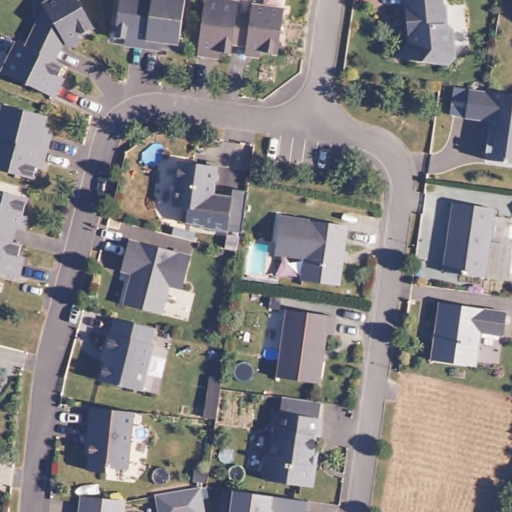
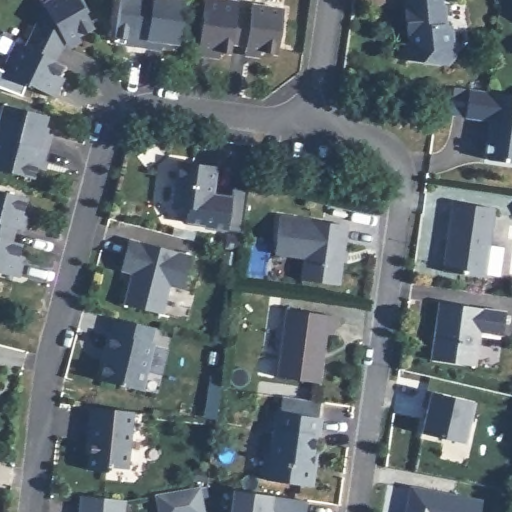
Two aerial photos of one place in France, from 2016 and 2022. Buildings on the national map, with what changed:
unchanged [(49,3),(47,0),(48,0),(83,0),(97,25),(69,40),(67,37),(56,57),(28,42),(49,3)]
unchanged [(134,44),(134,38),(118,35),(123,0),(155,0),(153,18),(152,21),(148,46),(134,44)]
unchanged [(153,18),(155,0),(187,0),(181,43),(164,41),(163,48),(148,46),(152,21),(153,18)]
unchanged [(213,58),(197,56),(205,0),(222,0),(238,2),(237,8),(236,13),(232,44),(230,54),(219,53),(218,59),(213,58)]
unchanged [(411,42),(407,0),(445,0),(445,4),(448,4),(449,23),(451,24),(455,27),(458,57),(450,65),(443,64),(412,60),(398,57),(411,42)]
unchanged [(236,13),(250,15),(252,4),(284,9),(277,54),(245,50),(246,46),(232,44),(236,13)]
unchanged [(63,80),(56,94),(4,67),(19,37),(28,42),(56,57),(66,62),(60,72),(66,75),(63,80)]
unchanged [(490,119),(465,116),(469,87),(512,93),(512,161),(488,158),(485,155),(487,139),(489,126),(490,119)]
unchanged [(48,116),(44,132),(51,134),(48,149),(46,149),(0,137),(0,122),(4,105),(48,116)]
unchanged [(48,149),(45,164),(39,163),(35,179),(0,171),(0,137),(46,149),(48,149)]
unchanged [(227,231),(204,228),(204,226),(186,223),(188,208),(173,206),(180,161),(218,167),(215,187),(213,195),(232,198),(227,231)]
unchanged [(21,228),(16,227),(14,241),(0,238),(0,190),(29,197),(21,228)]
unchanged [(496,207),(490,242),(484,275),(443,268),(448,235),(454,199),(496,207)]
unchanged [(349,227),(340,286),(303,280),(306,258),(276,253),(282,216),(349,227)]
unchanged [(21,277),(0,272),(0,238),(14,241),(23,244),(19,260),(25,261),(24,267),(21,277)]
unchanged [(131,272),(121,269),(129,238),(191,252),(183,286),(170,283),(163,312),(124,303),(130,280),(131,273),(131,272)]
unchanged [(443,301),(509,311),(506,334),(484,331),(479,365),(435,359),(438,339),(438,333),(443,301)]
unchanged [(337,312),(334,330),(327,329),(324,346),(320,349),(320,355),(323,355),(319,379),(276,372),(287,304),(337,312)]
unchanged [(102,349),(106,330),(109,331),(113,315),(142,322),(154,325),(150,341),(153,341),(142,388),(100,378),(104,359),(100,358),(102,349)]
new [(429,407),(425,406),(428,390),(476,402),(466,443),(423,433),(429,407)]
unchanged [(318,463),(315,486),(270,480),(265,473),(268,455),(274,451),(280,411),(283,412),(285,397),(308,400),(323,402),(321,417),(324,418),(322,436),(318,435),(315,452),(319,452),(318,463)]
unchanged [(93,405),(115,408),(136,411),(128,468),(108,465),(108,470),(89,467),(91,452),(86,451),(88,439),(93,405)]
unchanged [(206,487),(208,497),(201,499),(202,512),(158,512),(156,493),(199,487),(203,486),(206,487)]
new [(484,500),(481,512),(406,512),(412,486),(484,500)]
unchanged [(84,512),(84,511),(81,511),(84,493),(127,498),(125,512),(84,512)]
unchanged [(275,512),(276,511),(270,510),(269,512),(232,512),(234,495),(307,502),(306,512),(275,512)]

